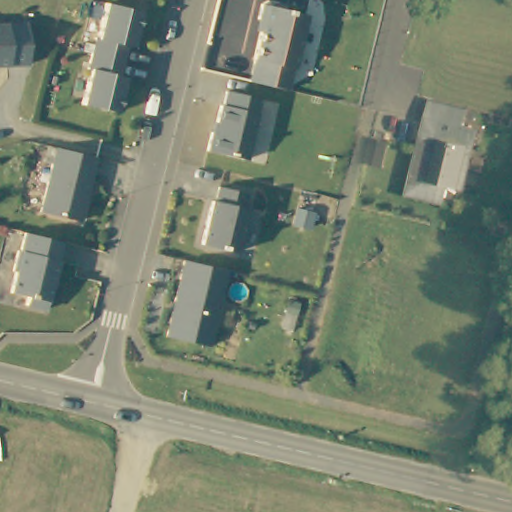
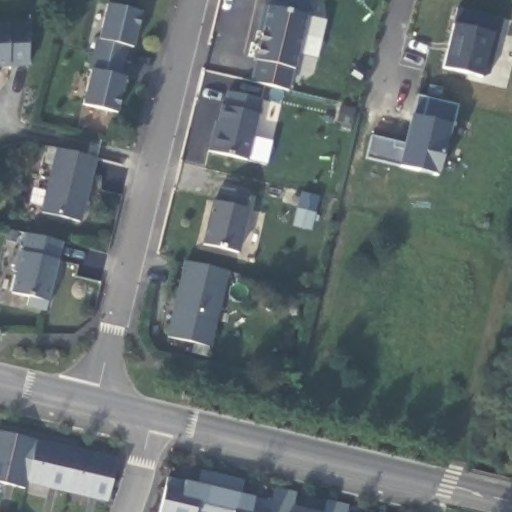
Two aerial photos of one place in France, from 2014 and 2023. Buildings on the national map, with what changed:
unchanged [(84,105),(91,68),(88,67),(95,38),(101,41),(109,4),(141,11),(133,49),(128,48),(122,76),(126,77),(119,112),(84,105)]
unchanged [(268,6),(284,9),(283,14),(305,20),(292,74),(291,73),(286,95),(254,88),(249,86),(254,65),(253,65),(263,25),(258,24),(261,9),(268,6)]
new [(504,18),(490,75),(482,74),(481,78),(443,68),(455,24),(454,23),(459,7),(504,18)]
unchanged [(28,67),(0,68),(0,24),(25,23),(28,67)]
unchanged [(209,152),(227,92),(262,99),(249,161),(209,152)]
unchanged [(408,194),(432,99),(469,107),(466,125),(482,129),(467,191),(452,188),(446,204),(408,194)]
unchanged [(54,157),(55,153),(69,157),(92,162),(77,226),(40,217),(54,157)]
unchanged [(203,244),(220,187),(252,195),(248,210),(253,211),(241,252),(203,244)]
unchanged [(52,265),(55,265),(50,283),(48,283),(39,314),(21,309),(23,301),(19,300),(6,296),(11,275),(10,274),(15,255),(17,255),(22,237),(25,238),(58,246),(52,265)]
unchanged [(168,336),(185,261),(229,269),(211,347),(168,336)]
new [(35,445),(56,450),(57,445),(78,450),(76,455),(96,459),(97,455),(117,460),(108,498),(90,493),(90,496),(68,491),(69,489),(48,483),(47,488),(26,482),(25,489),(0,483),(0,432),(36,440),(35,445)]
new [(196,484),(201,469),(222,475),(245,480),(241,494),(254,497),(257,494),(272,497),(274,488),(297,493),(295,501),(324,508),(326,501),(348,506),(347,512),(230,512),(197,504),(195,512),(159,512),(169,478),(185,481),(196,484)]

